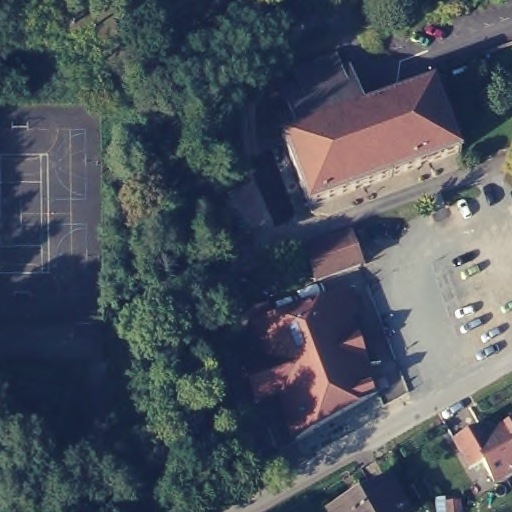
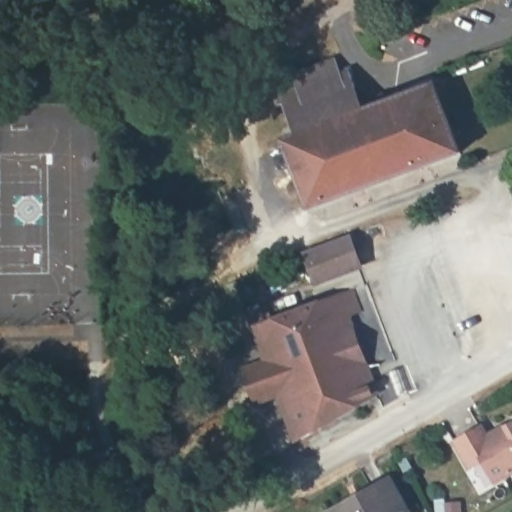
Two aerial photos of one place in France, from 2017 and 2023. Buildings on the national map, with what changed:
unchanged [(353,69),(368,105),(444,74),(471,147),(326,206),(324,199),(300,209),(271,145),(299,133),(284,97),(353,69)]
unchanged [(353,234),(361,263),(319,277),(310,247),(353,234)]
unchanged [(380,392),(294,442),(276,394),(253,403),(240,368),(263,358),(246,312),(266,305),(270,318),(351,290),(361,312),(349,316),(380,392)]
unchanged [(483,463),(471,471),(455,442),(485,424),(489,433),(512,423),(512,477),(497,485),(483,463)]
unchanged [(387,478),(407,512),(328,512),(387,478)]

